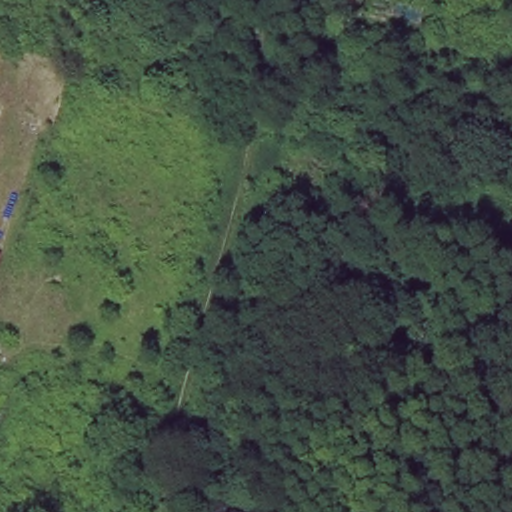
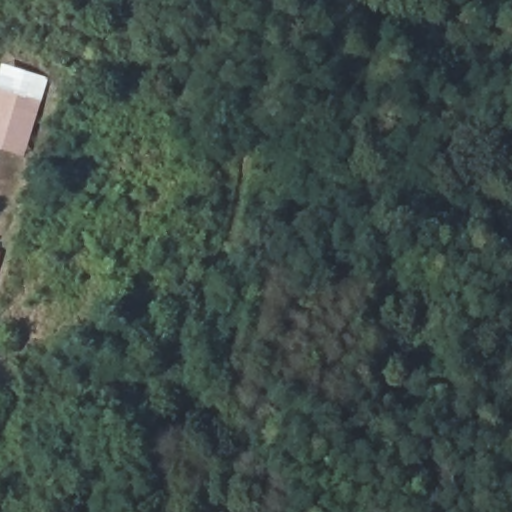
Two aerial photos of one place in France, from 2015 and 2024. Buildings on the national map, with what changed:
new [(24,157),(0,151),(0,66),(47,76),(24,157)]
new [(0,257),(0,252),(1,253),(0,257)]
unchanged [(157,378),(173,381),(170,396),(154,393),(157,378)]

